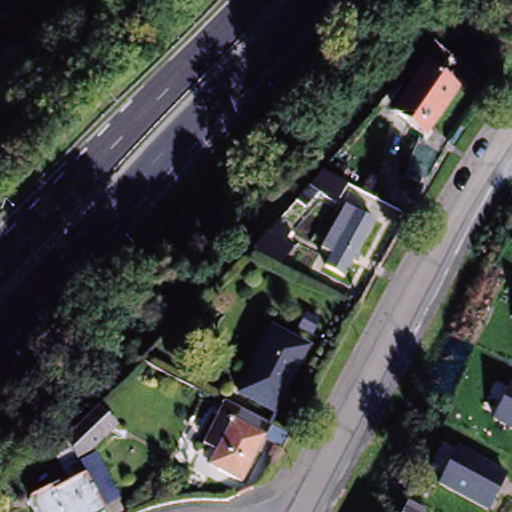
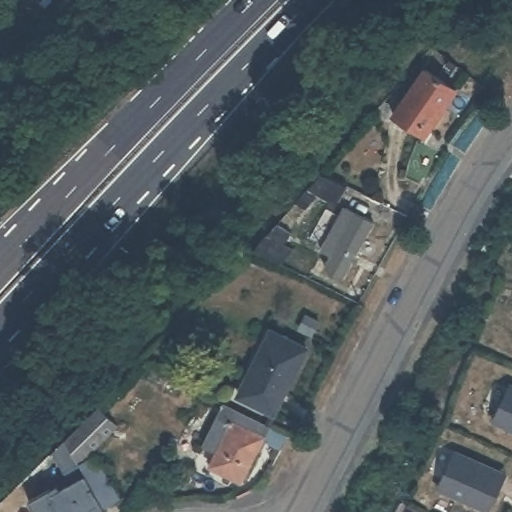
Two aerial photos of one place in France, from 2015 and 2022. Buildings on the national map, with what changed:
unchanged [(398,115),(430,73),(457,93),(425,137),(398,115)]
unchanged [(315,196),(302,210),(292,203),(320,172),(344,186),(334,206),(315,196)]
unchanged [(323,254),(347,210),(358,215),(374,224),(346,276),(329,268),(334,260),(323,254)]
unchanged [(290,246),(276,261),(251,248),(275,222),(286,231),(281,240),(290,246)]
unchanged [(288,332),(292,324),(303,328),(299,337),(288,332)]
unchanged [(245,397),(254,377),(245,373),(266,328),(306,348),(276,412),(245,397)]
unchanged [(492,420),(511,381),(512,381),(512,430),(492,420)]
unchanged [(215,467),(222,454),(208,447),(224,418),(230,405),(239,410),(275,428),(289,436),(293,438),(288,449),(269,440),(246,484),(215,467)]
unchanged [(46,488),(48,491),(68,481),(63,471),(53,452),(66,440),(100,407),(119,428),(91,453),(113,494),(99,502),(103,510),(105,512),(35,512),(28,499),(46,488)]
unchanged [(453,451),(508,475),(492,512),(484,512),(435,488),(453,451)]

